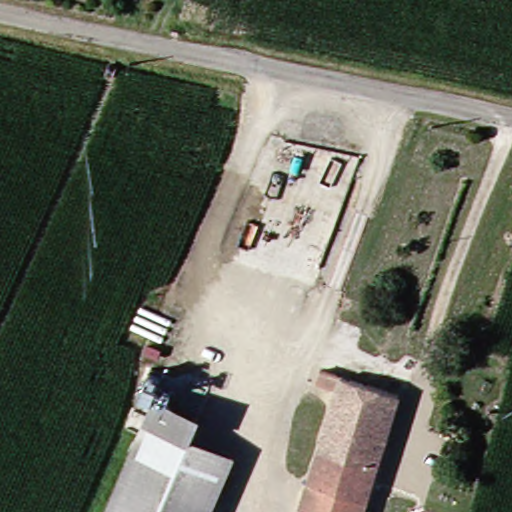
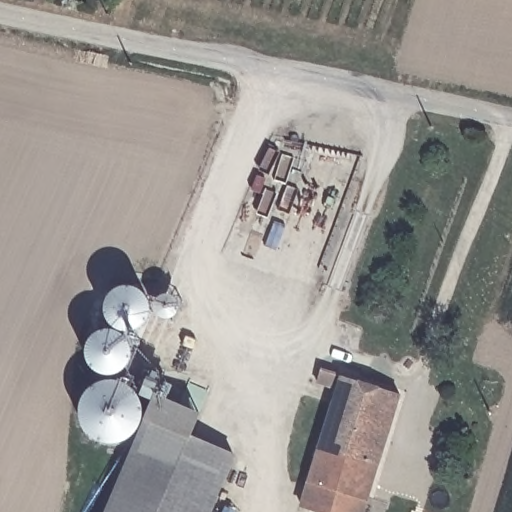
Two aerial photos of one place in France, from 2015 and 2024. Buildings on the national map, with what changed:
new [(151,307),(150,314),(148,320),(144,325),(139,330),(132,332),(126,332),(119,331),(113,327),(108,323),(105,317),(104,310),(104,304),(107,297),(111,292),(116,288),(122,285),(129,285),(136,286),(141,290),(146,295),(149,300),(151,307)]
new [(181,306),(180,311),(177,315),(173,318),(168,319),(163,318),(159,315),(156,311),(155,306),(156,301),(159,297),(163,295),(168,293),(173,295),(177,297),(180,301),(181,306)]
new [(133,352),(132,359),(130,365),(125,370),(119,375),(112,376),(106,376),(99,374),(93,370),(89,365),(87,358),(86,351),(88,344),(92,338),(97,333),(103,330),(110,330),(117,331),(123,335),(128,339),(132,345),(133,352)]
unchanged [(321,372),(400,393),(371,502),(311,486),(337,390),(318,385),(321,372)]
new [(81,420),(80,412),(82,401),(86,393),(92,387),(103,383),(116,381),(127,385),(136,391),(142,399),(144,409),(144,419),(140,428),(135,435),(126,441),(115,445),(106,445),(96,440),(88,435),(84,428),(81,420)]
unchanged [(196,440),(240,458),(218,512),(114,512),(160,400),(205,418),(196,440)]
new [(319,512),(306,508),(311,486),(371,502),(368,512),(319,512)]

